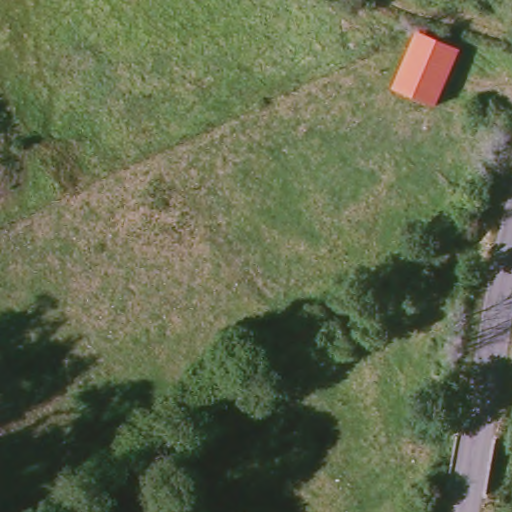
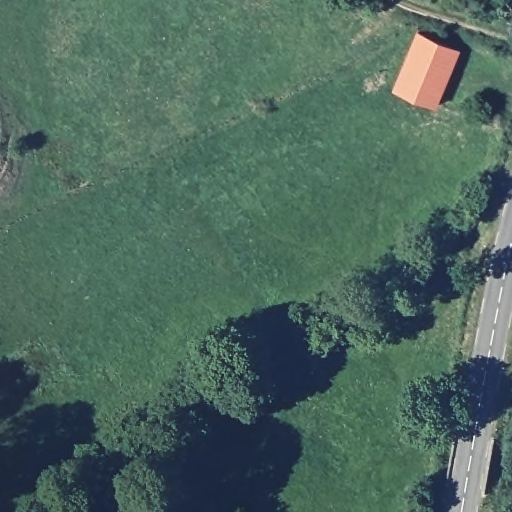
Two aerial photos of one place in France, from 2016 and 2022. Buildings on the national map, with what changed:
unchanged [(418,32),(459,51),(436,106),(394,88),(418,32)]

